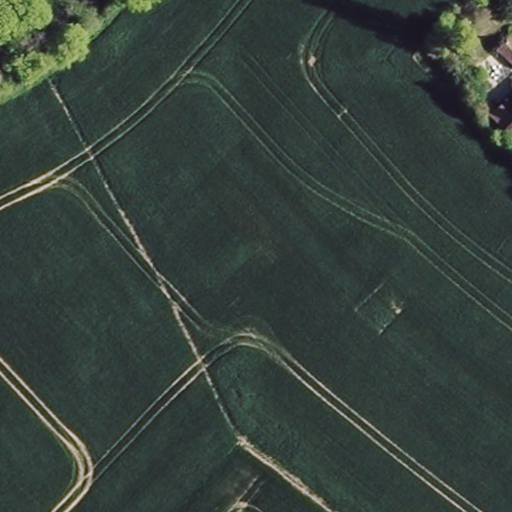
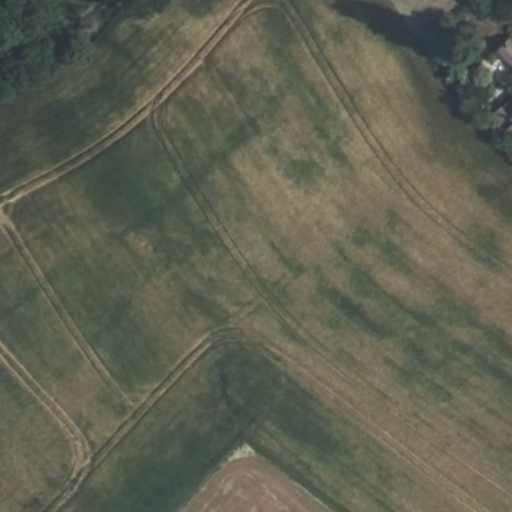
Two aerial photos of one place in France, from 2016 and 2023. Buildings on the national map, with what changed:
unchanged [(512,113),(512,140),(498,126),(512,113)]

